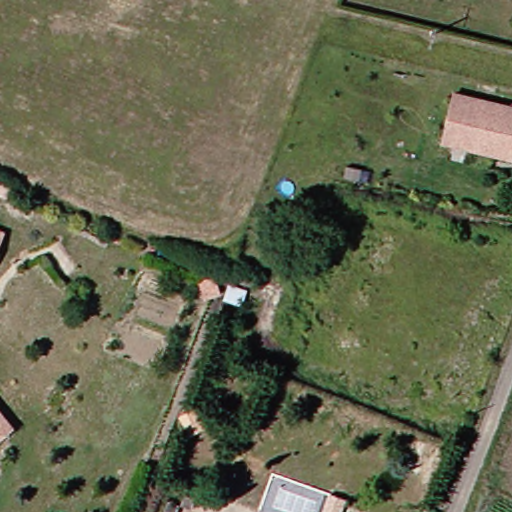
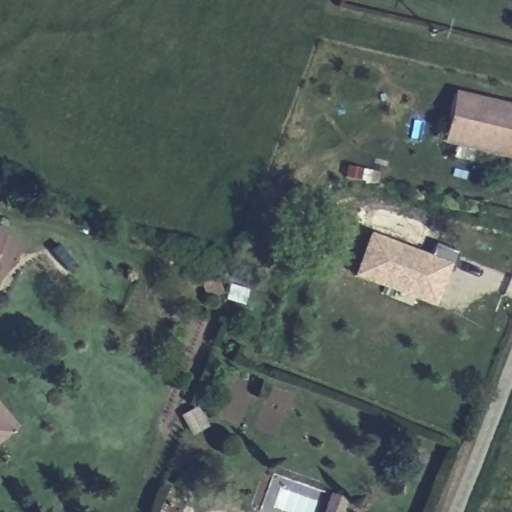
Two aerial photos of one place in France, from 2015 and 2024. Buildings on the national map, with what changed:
unchanged [(439,144),(450,98),(510,113),(510,108),(512,108),(512,161),(439,144)]
unchanged [(0,245),(0,233),(5,234),(0,245)]
new [(438,246),(455,253),(434,308),(352,277),(370,233),(433,257),(438,246)]
unchanged [(0,431),(0,407),(12,422),(0,431)]
unchanged [(163,512),(143,512),(146,505),(163,512)]

